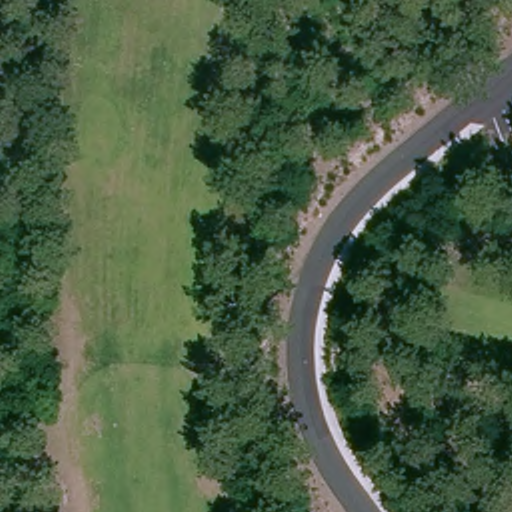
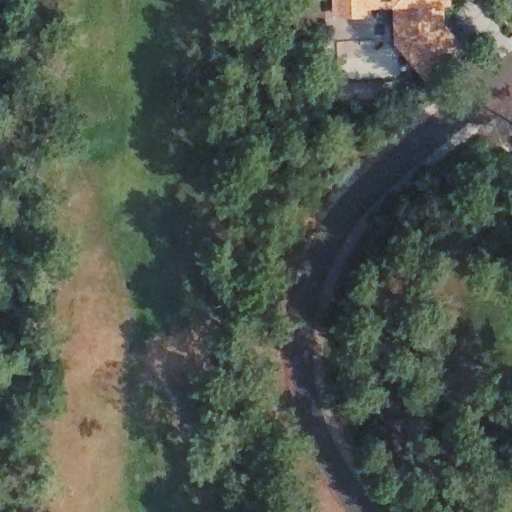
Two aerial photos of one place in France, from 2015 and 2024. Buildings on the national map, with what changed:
new [(395,7),(379,8),(371,18),(334,18),(333,0),(454,0),(454,4),(445,5),(447,26),(468,47),(427,81),(396,45),(395,7)]

